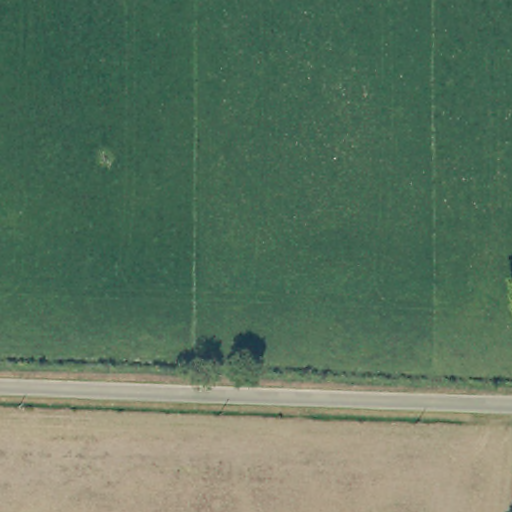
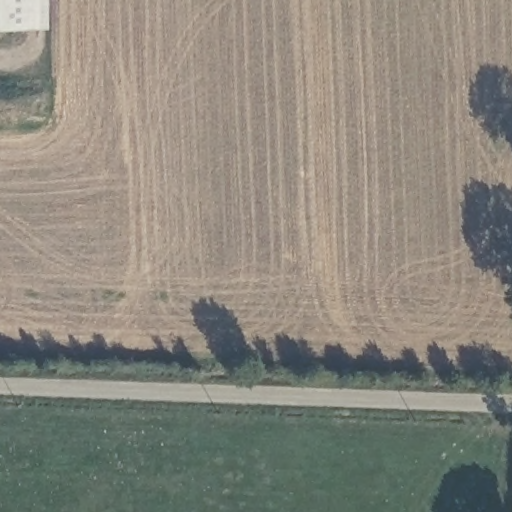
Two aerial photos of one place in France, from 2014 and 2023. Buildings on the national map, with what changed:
new [(44,0),(45,27),(0,28),(0,0),(44,0)]

